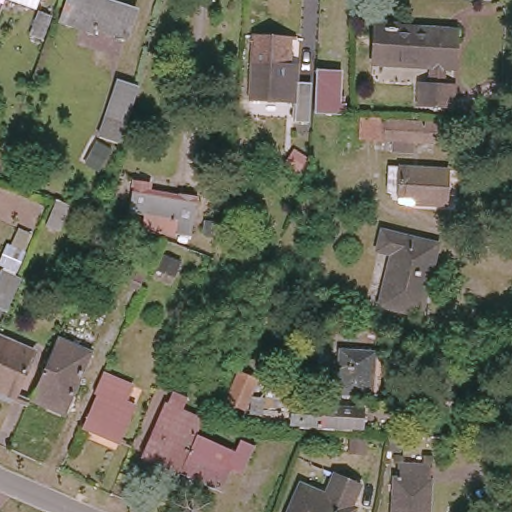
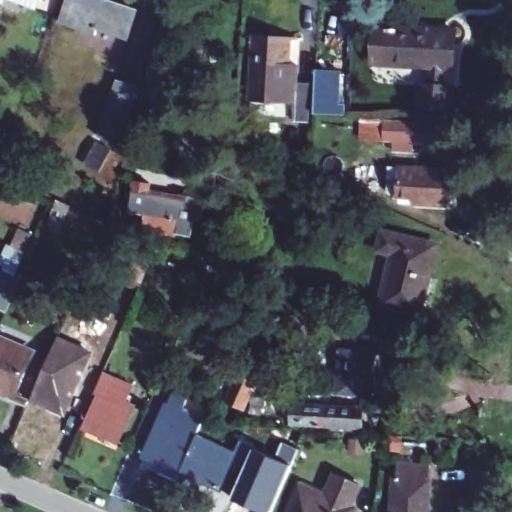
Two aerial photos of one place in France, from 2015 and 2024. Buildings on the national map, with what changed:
unchanged [(93,35),(57,24),(64,0),(107,0),(132,7),(130,15),(123,36),(94,27),(93,35)]
unchanged [(53,16),(46,40),(34,35),(41,12),(53,16)]
unchanged [(371,60),(373,26),(452,30),(449,65),(371,60)]
unchanged [(286,34),(284,57),(293,57),(291,76),(305,77),(303,114),(288,115),(288,113),(289,95),(245,95),(247,65),(249,31),(286,34)]
unchanged [(310,108),(313,65),(334,67),(333,100),(339,101),(338,110),(310,108)]
unchanged [(140,83),(118,145),(91,135),(116,75),(140,83)]
unchanged [(422,82),(454,85),(453,104),(421,102),(422,82)]
unchanged [(450,121),(449,142),(429,141),(428,153),(406,151),(407,139),(374,136),(375,116),(450,121)]
unchanged [(451,200),(419,199),(420,191),(404,190),(404,172),(394,171),(394,162),(404,162),(452,165),(451,200)]
unchanged [(174,197),(175,192),(193,195),(192,201),(186,235),(172,232),(168,235),(136,230),(143,192),(174,197)]
unchanged [(437,237),(422,305),(383,295),(394,245),(380,241),(384,225),(437,237)]
unchanged [(0,273),(1,270),(19,279),(5,310),(0,307),(0,273)]
unchanged [(12,398),(0,393),(0,338),(32,353),(12,398)]
unchanged [(55,338),(89,354),(61,415),(28,400),(55,338)]
unchanged [(338,348),(373,350),(369,393),(335,392),(338,348)]
unchanged [(241,366),(258,373),(245,403),(228,396),(241,366)]
unchanged [(104,368),(135,381),(128,396),(139,401),(122,438),(91,423),(84,425),(83,421),(89,420),(101,391),(95,389),(104,368)]
unchanged [(178,469),(143,453),(164,403),(166,403),(171,390),(185,396),(179,408),(199,417),(198,419),(193,432),(178,469)]
unchanged [(358,428),(350,428),(317,425),(289,424),(290,406),(334,410),(351,411),(360,411),(358,428)]
unchanged [(225,465),(216,487),(176,470),(178,469),(193,432),(231,450),(237,436),(251,442),(239,470),(225,465)]
new [(274,458),(282,442),(298,450),(291,464),(269,512),(266,512),(233,497),(254,449),(274,458)]
unchanged [(425,468),(422,512),(390,512),(392,481),(394,481),(394,467),(425,468)]
unchanged [(332,474),(356,485),(348,506),(352,508),(350,512),(285,512),(299,483),(323,495),(332,474)]

